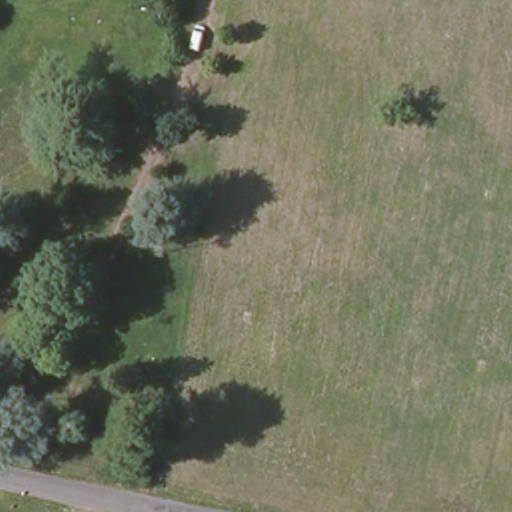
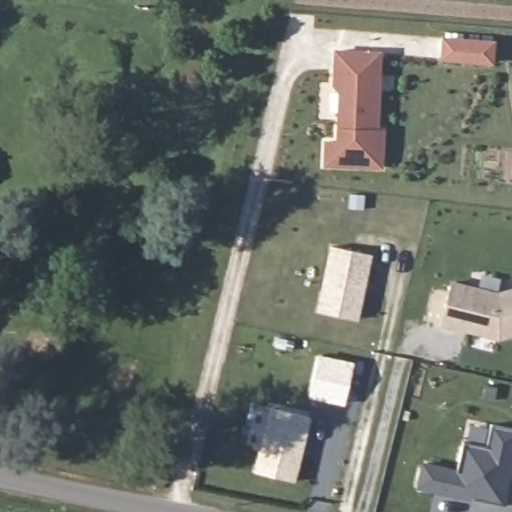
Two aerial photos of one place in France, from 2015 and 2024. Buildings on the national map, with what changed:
new [(440,60),(442,36),(492,40),(490,64),(440,60)]
new [(385,129),(383,170),(323,167),(324,141),(336,141),(338,87),(332,87),(334,48),(382,50),(379,129),(385,129)]
new [(317,312),(331,246),(372,254),(359,320),(337,316),(317,312)]
new [(452,282),(497,292),(512,289),(512,337),(498,341),(441,326),(452,282)]
new [(344,405),(309,398),(318,354),(354,362),(344,405)]
new [(294,482),(252,472),(269,407),(311,417),(294,482)]
new [(424,466),(458,473),(469,421),(512,431),(512,469),(505,505),(419,487),(424,466)]

